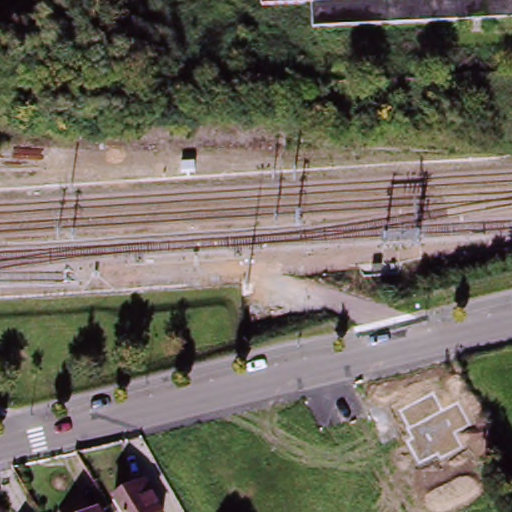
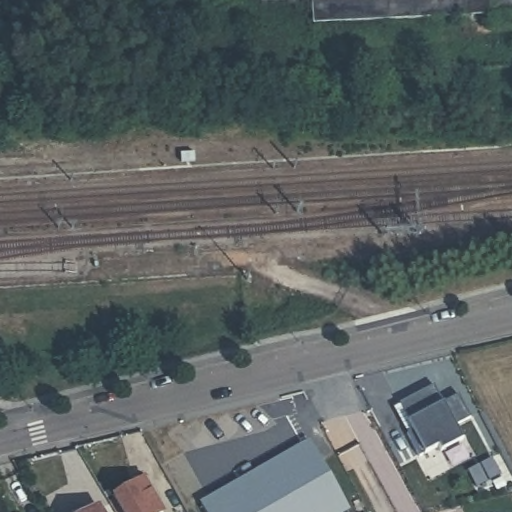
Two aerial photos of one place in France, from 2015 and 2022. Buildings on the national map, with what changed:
unchanged [(408,21),(311,26),(310,2),(261,4),(261,0),(512,0),(512,16),(408,21)]
new [(440,449),(438,445),(424,452),(418,455),(407,434),(413,432),(407,421),(410,420),(400,403),(434,386),(443,404),(460,396),(470,417),(455,426),(461,438),(440,449)]
new [(301,447),(311,466),(318,462),(346,512),(201,512),(197,506),(301,447)]
unchanged [(141,481),(159,512),(119,512),(111,498),(141,481)]
unchanged [(99,510),(100,512),(95,512),(99,510)]

